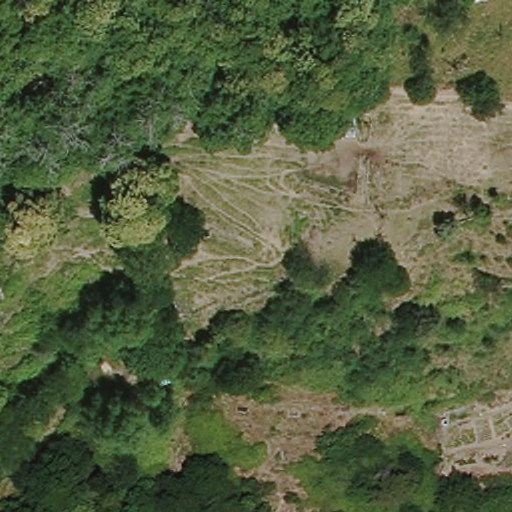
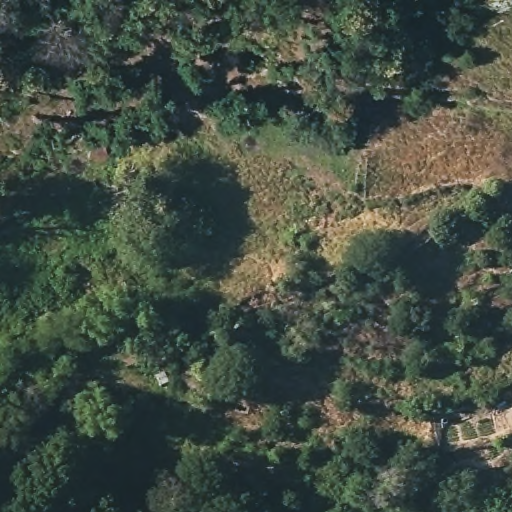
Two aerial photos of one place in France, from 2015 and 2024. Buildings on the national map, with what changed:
unchanged [(140,351),(145,368),(128,370),(124,355),(140,351)]

